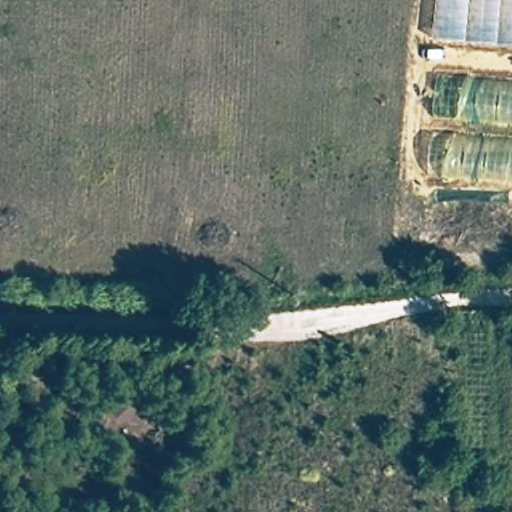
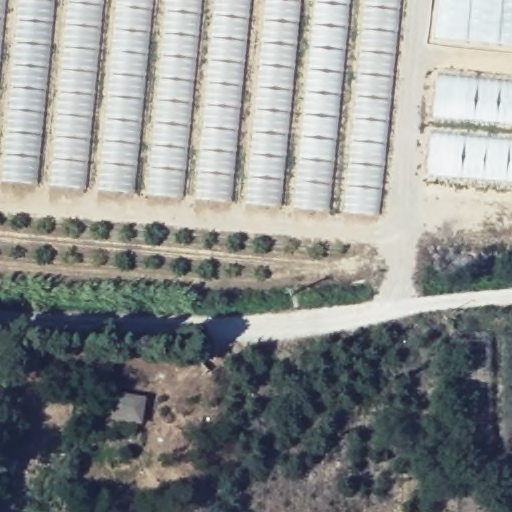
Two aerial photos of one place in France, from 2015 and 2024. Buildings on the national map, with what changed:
new [(377,216),(0,182),(0,0),(398,0),(377,216)]
unchanged [(512,46),(435,39),(439,0),(512,0),(512,46)]
unchanged [(437,79),(512,87),(512,180),(430,172),(437,79)]

